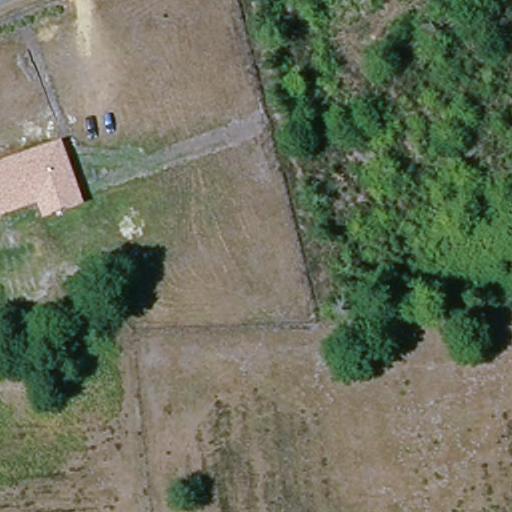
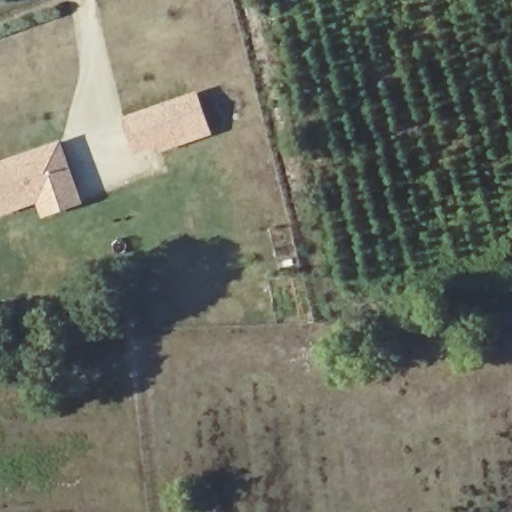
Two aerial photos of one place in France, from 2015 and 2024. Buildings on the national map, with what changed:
new [(160,153),(158,148),(133,155),(122,118),(198,91),(213,134),(160,153)]
unchanged [(62,140),(85,205),(43,219),(37,205),(0,218),(0,162),(62,140)]

